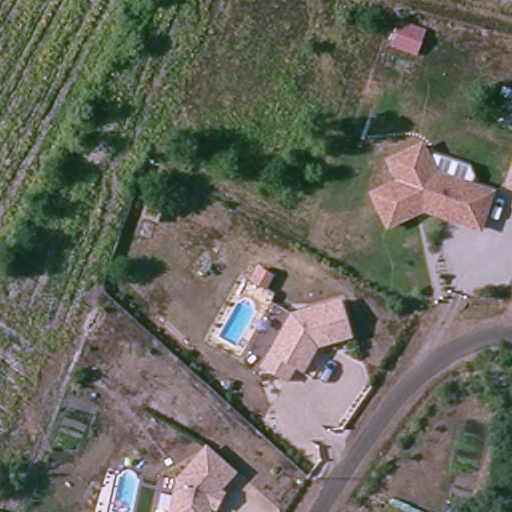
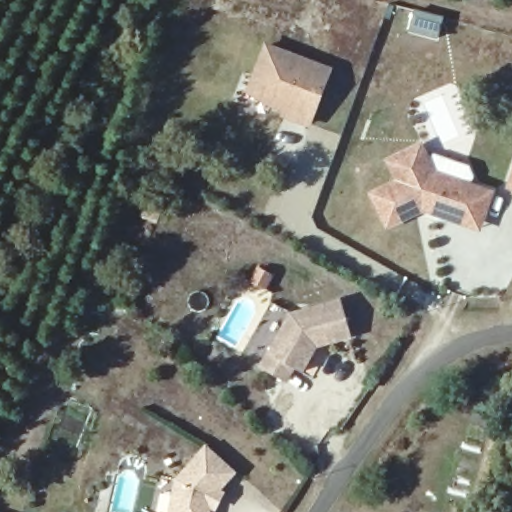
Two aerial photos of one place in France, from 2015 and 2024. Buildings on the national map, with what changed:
new [(267,105),(247,91),(263,40),(332,66),(310,127),(281,117),(283,111),(267,105)]
unchanged [(446,216),(424,207),(417,211),(389,224),(374,192),(401,179),(391,158),(423,143),(436,171),(493,192),(487,208),(480,227),(446,216)]
unchanged [(512,182),(512,183),(511,183),(512,182)]
unchanged [(356,334),(337,340),(335,335),(321,339),(317,346),(318,350),(306,371),(298,366),(290,380),(266,367),(295,313),(346,298),(356,334)]
unchanged [(175,471),(206,443),(230,470),(206,492),(199,512),(166,512),(162,511),(175,471)]

